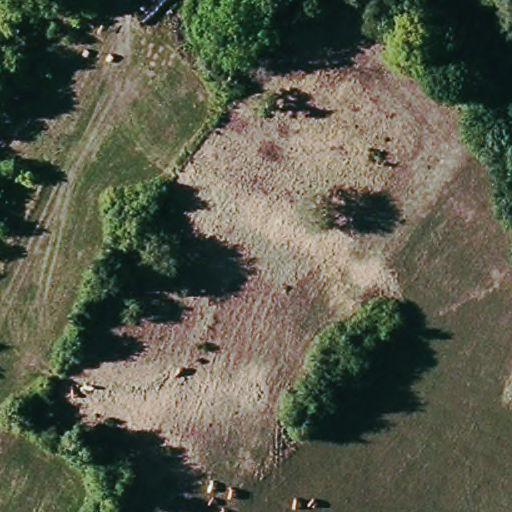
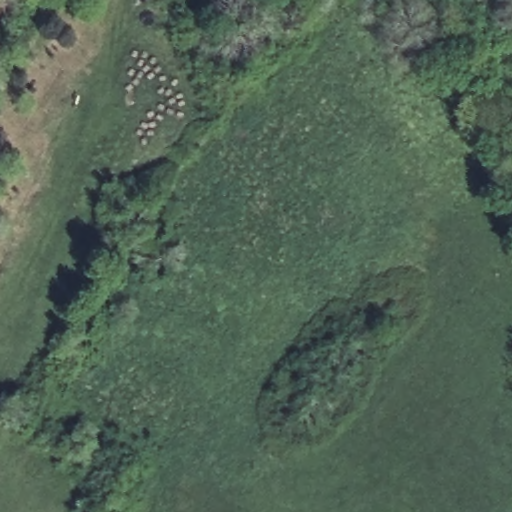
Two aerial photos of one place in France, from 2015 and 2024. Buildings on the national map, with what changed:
unchanged [(227,37),(233,33),(239,33),(245,36),(247,43),(245,48),(240,52),(235,53),(231,52),(228,49),(225,42),(227,37)]

